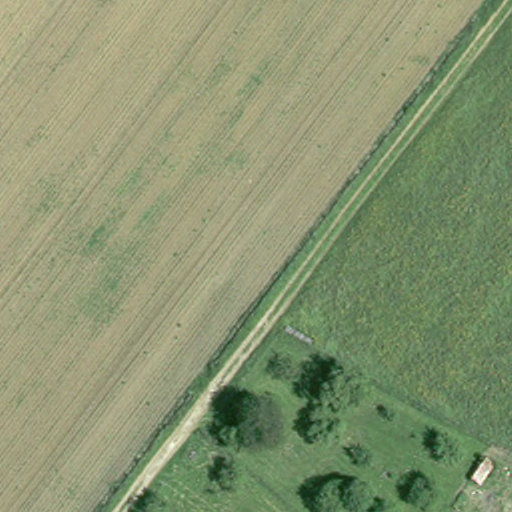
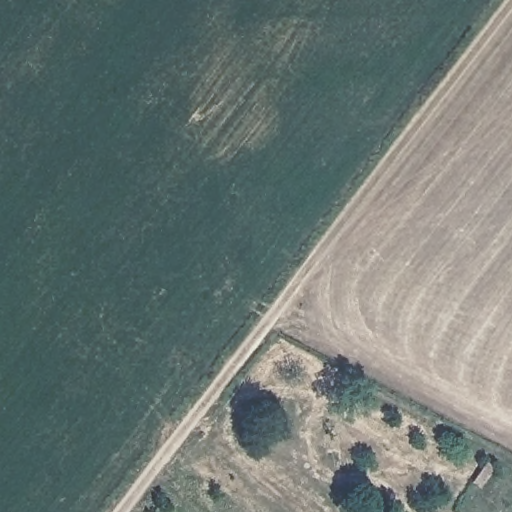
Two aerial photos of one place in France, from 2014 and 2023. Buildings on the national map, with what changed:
unchanged [(493,465),(478,486),(470,480),(486,459),(493,465)]

